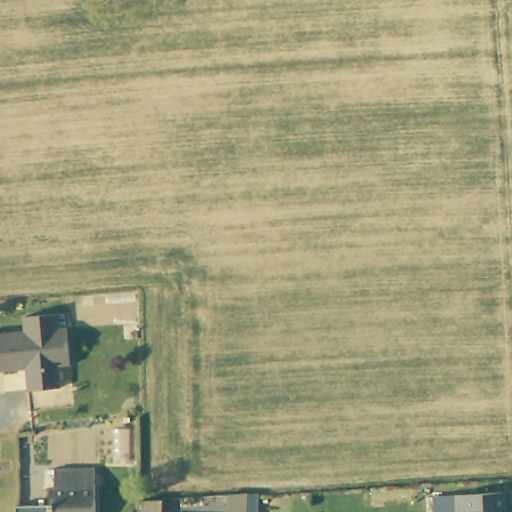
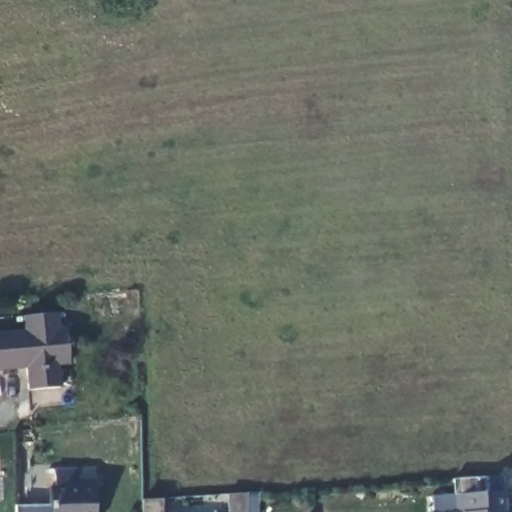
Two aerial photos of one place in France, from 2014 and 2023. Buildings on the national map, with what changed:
unchanged [(27,332),(26,318),(61,316),(62,330),(69,328),(70,335),(72,365),(60,366),(61,387),(33,390),(30,366),(22,367),(22,370),(0,372),(0,335),(27,332)]
unchanged [(99,512),(18,512),(17,496),(52,495),(52,477),(57,477),(56,458),(97,456),(99,512)]
unchanged [(256,481),(255,507),(245,507),(245,510),(227,510),(226,483),(246,481),(256,481)]
unchanged [(508,510),(505,510),(505,512),(436,512),(436,495),(456,495),(507,494),(508,510)]
unchanged [(160,508),(227,510),(227,512),(159,512),(160,508)]

